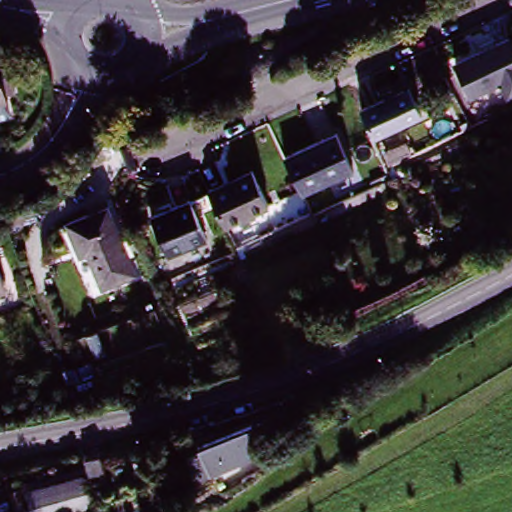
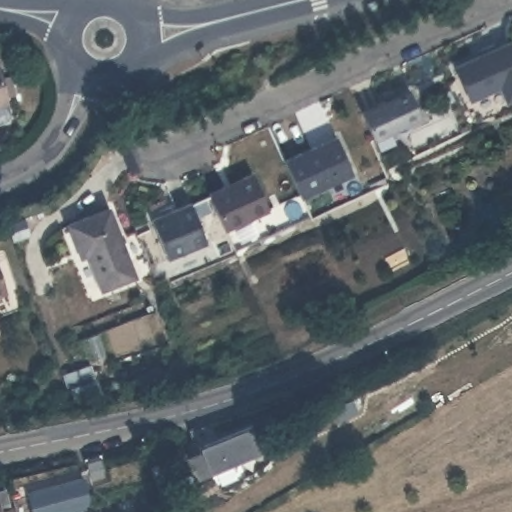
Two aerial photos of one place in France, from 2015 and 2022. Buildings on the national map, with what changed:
unchanged [(512,97),(511,98),(503,82),(475,95),(460,61),(512,37),(512,97)]
unchanged [(0,102),(0,87),(2,95),(4,101),(0,102)]
unchanged [(411,94),(413,93),(426,120),(378,142),(366,115),(411,94)]
unchanged [(336,133),(353,171),(302,195),(283,155),(336,133)]
unchanged [(0,155),(0,144),(1,144),(3,155),(0,155)]
unchanged [(254,174),(271,212),(226,232),(208,195),(254,174)]
unchanged [(191,197),(209,240),(169,257),(150,216),(191,197)]
unchanged [(77,250),(65,222),(105,205),(135,270),(104,284),(89,253),(80,256),(77,250)]
unchanged [(0,287),(0,274),(2,280),(5,285),(0,287)]
unchanged [(337,292),(320,301),(314,290),(331,281),(337,292)]
unchanged [(96,378),(71,387),(65,371),(90,361),(96,378)]
unchanged [(198,455),(206,452),(204,445),(199,447),(195,427),(221,420),(228,435),(257,424),(263,439),(230,453),(234,465),(214,472),(205,476),(198,455)]
unchanged [(100,454),(107,481),(93,485),(92,485),(86,457),(100,454)]
unchanged [(32,505),(27,490),(37,486),(72,477),(80,505),(58,512),(34,512),(32,505)]
unchanged [(6,486),(14,512),(0,512),(0,489),(6,486)]
unchanged [(130,487),(138,512),(123,512),(116,492),(130,487)]
unchanged [(17,503),(23,501),(26,512),(18,512),(16,503),(17,503)]

